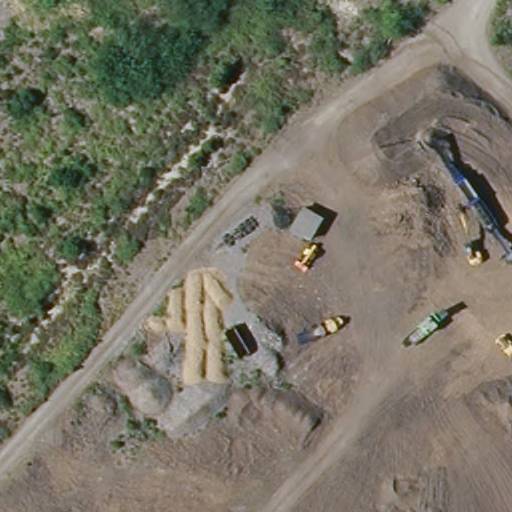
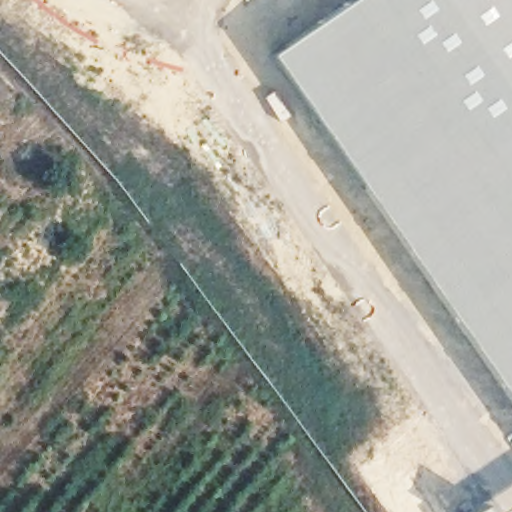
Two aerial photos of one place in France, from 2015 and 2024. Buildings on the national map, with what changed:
new [(273,53),(350,0),(512,0),(512,401),(273,53)]

